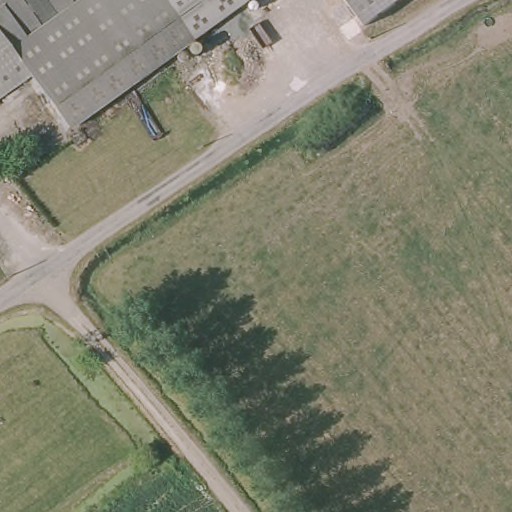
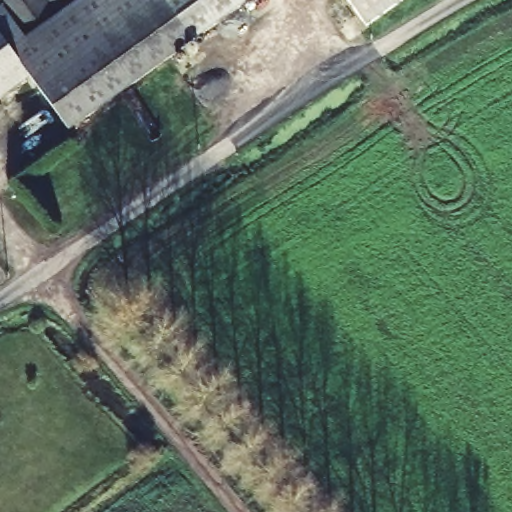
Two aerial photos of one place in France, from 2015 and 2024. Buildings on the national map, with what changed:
unchanged [(8,10),(1,0),(88,0),(33,40),(8,10)]
unchanged [(71,134),(32,80),(15,55),(33,40),(88,0),(105,0),(157,68),(71,134)]
unchanged [(157,68),(105,0),(159,0),(192,41),(157,68)]
unchanged [(159,0),(246,0),(192,41),(159,0)]
unchanged [(355,0),(404,0),(372,23),(355,0)]
unchanged [(15,55),(32,80),(0,103),(0,16),(8,10),(33,40),(15,55)]

